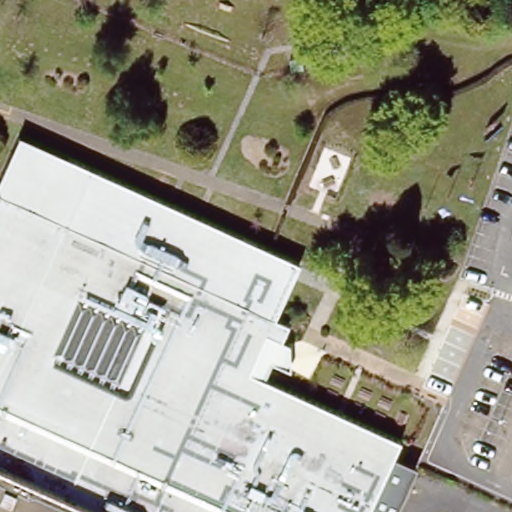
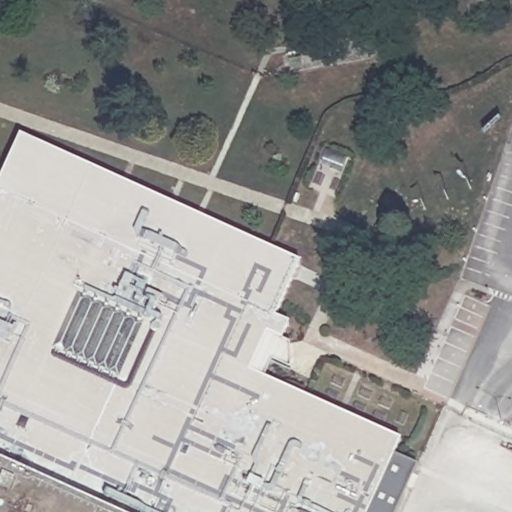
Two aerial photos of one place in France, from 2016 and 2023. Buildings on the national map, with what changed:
unchanged [(13,140),(306,268),(274,347),(293,354),(284,374),(266,367),(257,390),(393,447),(364,512),(0,512),(0,171),(13,140)]

